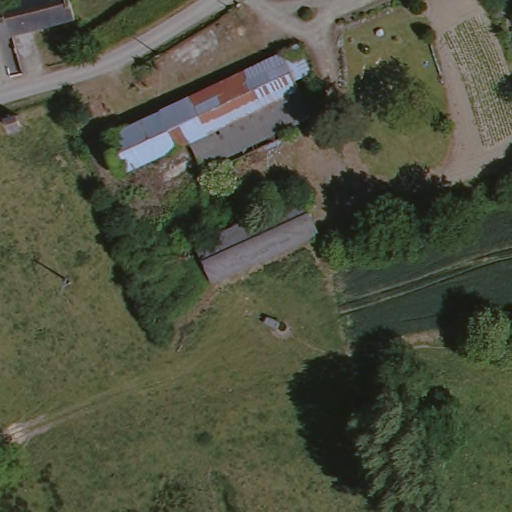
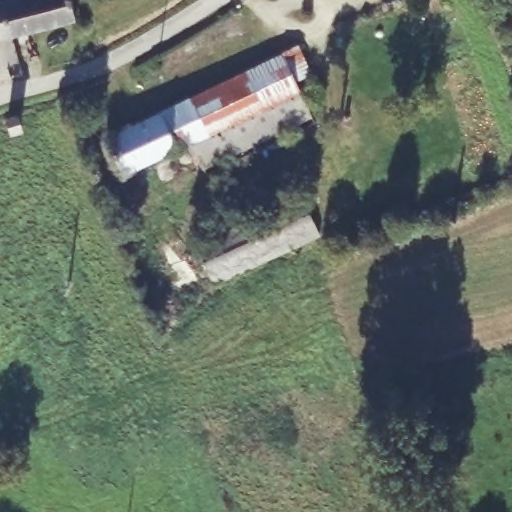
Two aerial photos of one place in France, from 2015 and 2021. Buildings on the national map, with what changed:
unchanged [(8,0),(16,33),(0,38),(0,0),(8,0)]
unchanged [(16,33),(8,0),(75,0),(79,16),(16,33)]
unchanged [(294,79),(299,90),(185,141),(177,144),(160,107),(296,46),(302,44),(314,70),(309,71),(294,79)]
unchanged [(314,126),(284,138),(289,150),(214,181),(209,172),(202,175),(185,141),(299,90),(314,126)]
unchanged [(177,144),(125,168),(107,131),(160,107),(177,144)]
unchanged [(214,280),(197,239),(307,195),(325,236),(214,280)]

